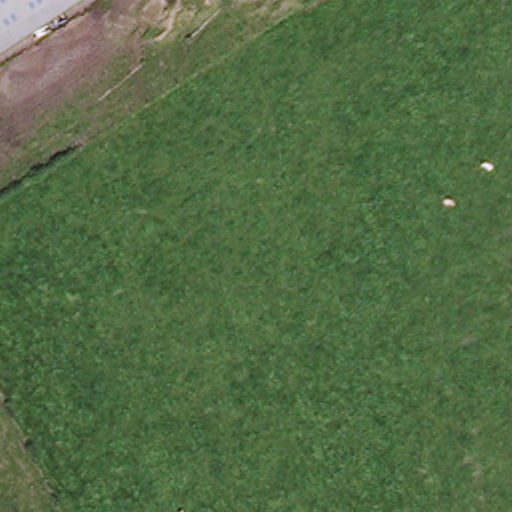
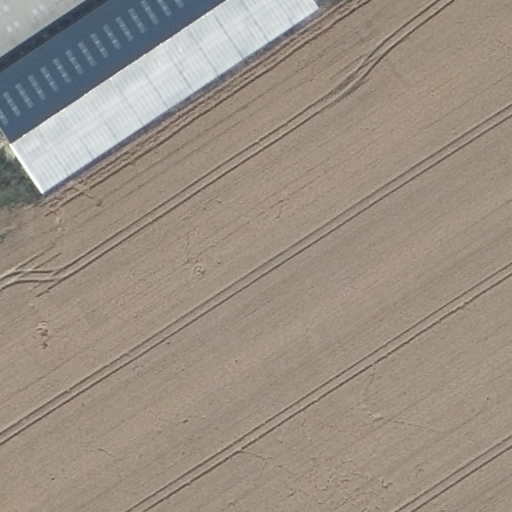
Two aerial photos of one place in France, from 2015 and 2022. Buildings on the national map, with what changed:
unchanged [(0,0),(81,0),(0,53),(0,0)]
new [(310,0),(317,11),(43,194),(0,127),(0,77),(118,0),(310,0)]

